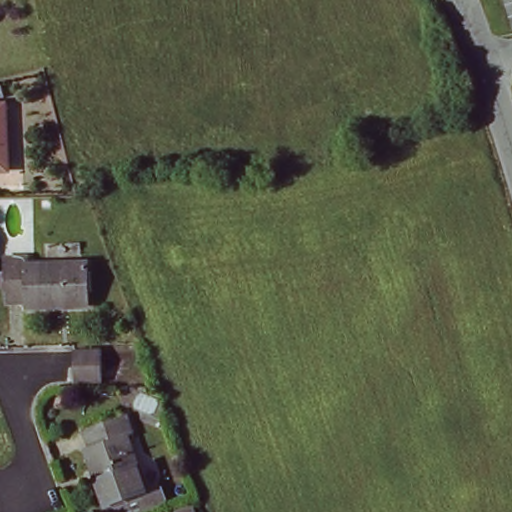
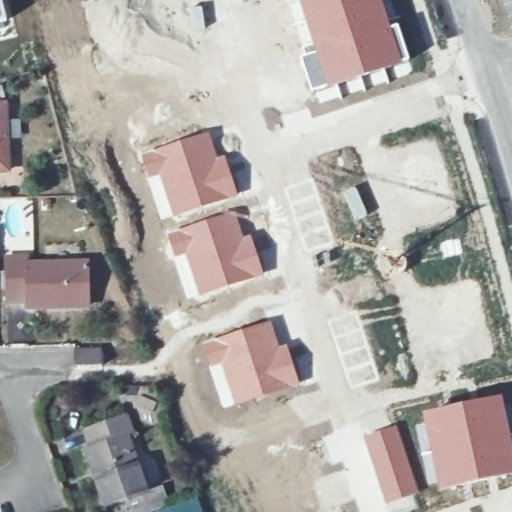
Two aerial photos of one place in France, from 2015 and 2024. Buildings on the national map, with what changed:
new [(391,25),(398,23),(410,63),(364,80),(368,89),(348,94),(345,85),(312,95),(300,57),(313,52),(295,0),(383,0),(391,25)]
new [(3,21),(0,22),(0,8),(3,21)]
unchanged [(0,172),(0,101),(9,101),(11,171),(0,172)]
new [(209,132),(218,158),(225,156),(238,196),(161,219),(141,154),(209,132)]
new [(236,211),(244,236),(251,234),(264,276),(196,297),(184,261),(177,263),(167,234),(236,211)]
unchanged [(91,306),(28,309),(27,302),(9,303),(6,257),(24,256),(30,264),(87,260),(91,306)]
new [(271,320),(280,345),(286,343),(300,385),(224,409),(202,343),(271,320)]
unchanged [(70,375),(70,361),(71,345),(103,345),(103,360),(103,375),(70,375)]
new [(512,444),(512,475),(437,490),(421,413),(502,395),(512,444)]
unchanged [(136,431),(126,434),(148,492),(114,505),(92,448),(99,445),(93,428),(129,413),(136,431)]
new [(397,425),(419,493),(385,504),(363,436),(397,425)]
new [(344,470),(354,499),(324,509),(315,479),(344,470)]

